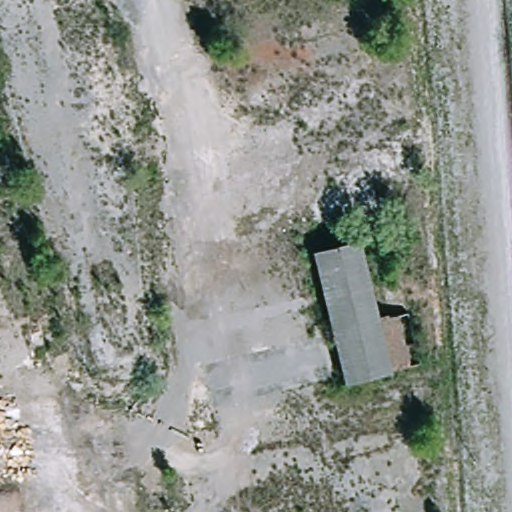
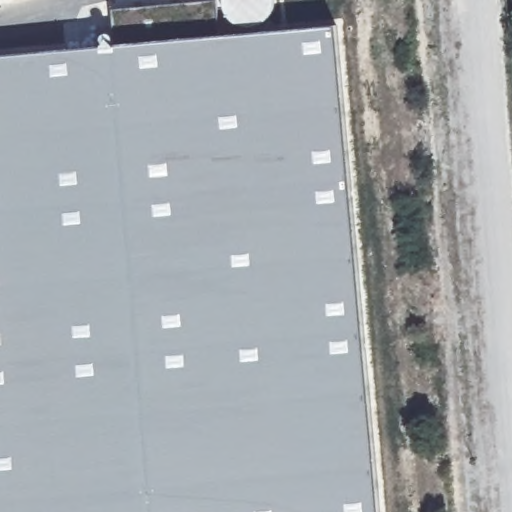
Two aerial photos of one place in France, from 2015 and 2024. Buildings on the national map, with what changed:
new [(112,10),(215,1),(218,37),(336,27),(378,512),(0,512),(0,57),(115,47),(112,10)]
demolished [(344,382),(311,252),(354,242),(372,318),(405,312),(418,363),(344,382)]

